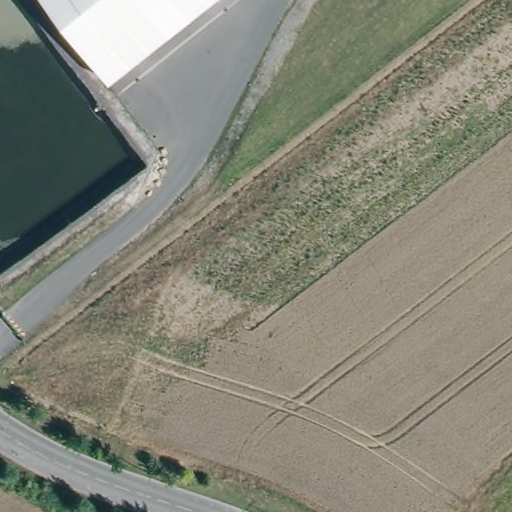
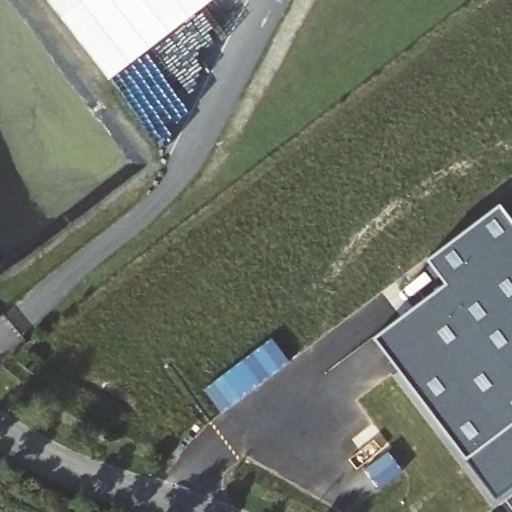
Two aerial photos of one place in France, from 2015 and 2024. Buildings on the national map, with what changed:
unchanged [(109,79),(46,0),(208,0),(109,79)]
new [(374,336),(444,282),(427,259),(501,202),(512,218),(512,485),(496,497),(374,336)]

